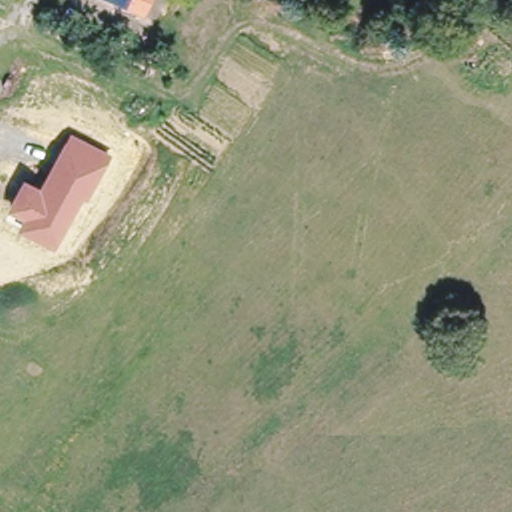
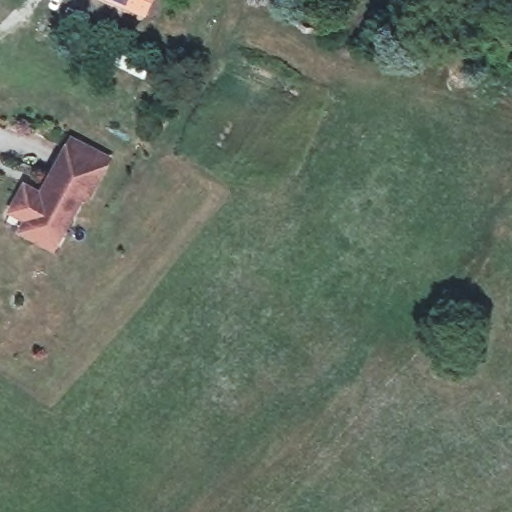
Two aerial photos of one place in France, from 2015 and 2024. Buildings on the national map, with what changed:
unchanged [(147,4),(140,22),(118,10),(122,0),(141,0),(147,4)]
unchanged [(112,157),(88,203),(85,202),(55,255),(16,230),(24,219),(9,208),(25,179),(41,189),(71,134),(112,157)]

